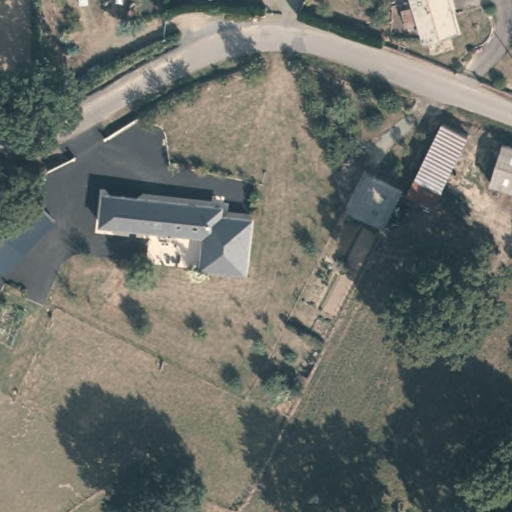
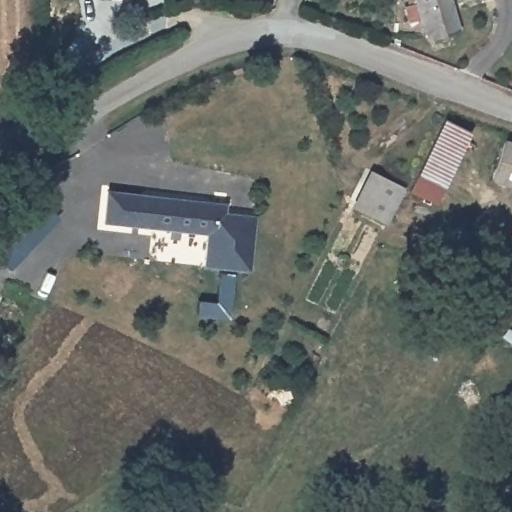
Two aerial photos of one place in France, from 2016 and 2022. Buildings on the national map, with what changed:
unchanged [(430,37),(419,0),(448,0),(456,29),(430,37)]
unchanged [(448,120),(474,136),(433,206),(407,190),(448,120)]
unchanged [(512,183),(493,176),(508,136),(512,138),(512,183)]
unchanged [(358,211),(378,170),(406,184),(386,224),(358,211)]
unchanged [(201,265),(203,232),(100,221),(102,191),(221,204),(220,213),(252,216),(250,227),(246,270),(230,268),(201,265)]
unchanged [(8,269),(0,265),(0,231),(31,196),(58,216),(8,269)]

